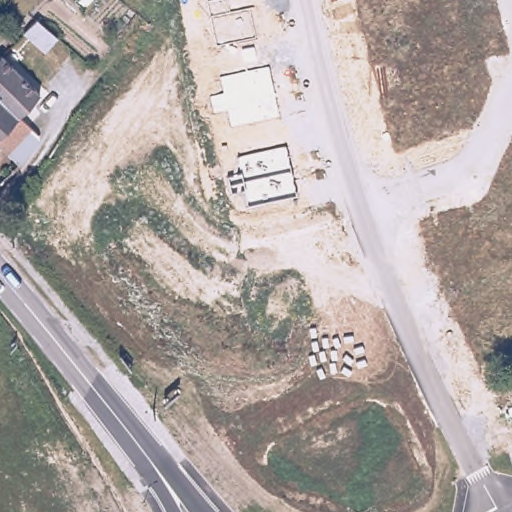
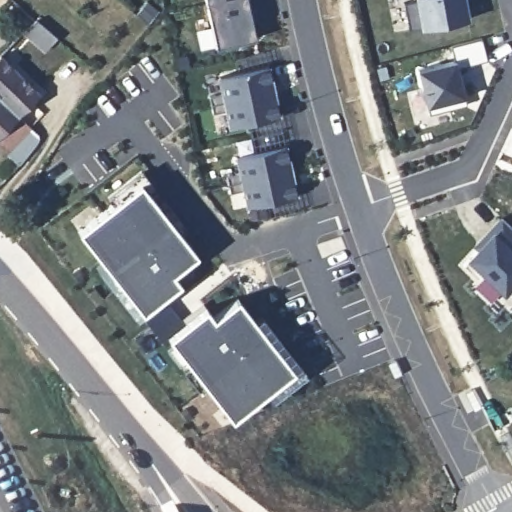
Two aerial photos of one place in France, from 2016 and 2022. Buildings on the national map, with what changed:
unchanged [(217,45),(207,0),(249,0),(257,35),(217,45)]
unchanged [(404,1),(410,0),(463,0),(468,17),(408,27),(404,1)]
unchanged [(36,12),(57,31),(45,45),(24,26),(36,12)]
new [(456,58),(452,43),(483,35),(490,58),(460,66),(469,102),(431,112),(420,67),(456,58)]
unchanged [(0,62),(5,57),(44,94),(23,117),(0,95),(0,62)]
unchanged [(270,66),(281,115),(229,126),(226,110),(214,114),(211,96),(223,94),(220,76),(270,66)]
unchanged [(0,137),(0,95),(23,117),(18,123),(0,137)]
unchanged [(22,167),(0,150),(0,141),(18,123),(24,116),(42,137),(22,167)]
unchanged [(287,147),(300,194),(247,205),(244,189),(232,193),(227,175),(240,172),(236,156),(287,147)]
new [(139,184),(196,255),(172,274),(180,284),(162,298),(184,325),(206,308),(214,317),(237,298),(294,369),(233,418),(171,341),(165,346),(140,315),(142,313),(77,233),(139,184)]
new [(496,231),(492,229),(505,216),(512,223),(512,285),(507,290),(487,271),(481,277),(466,263),(496,231)]

